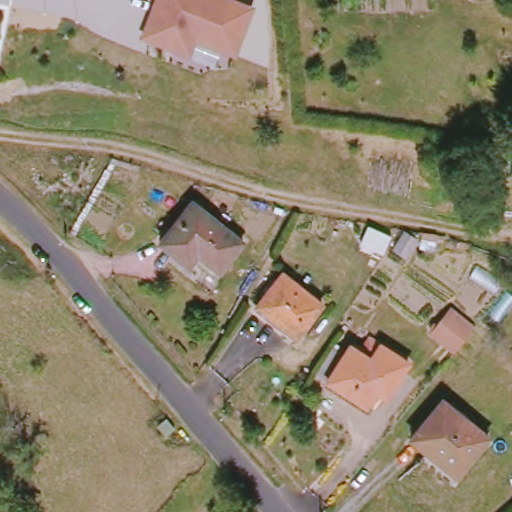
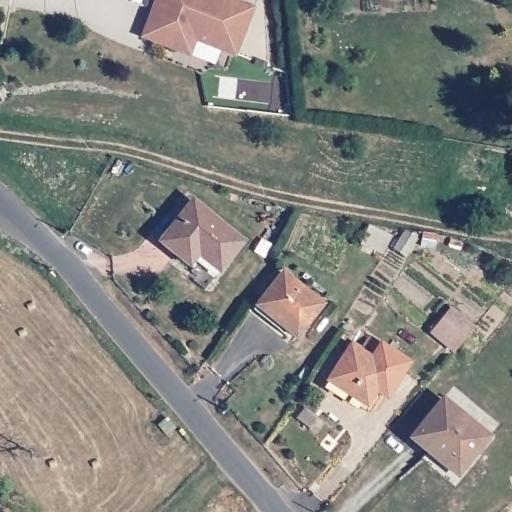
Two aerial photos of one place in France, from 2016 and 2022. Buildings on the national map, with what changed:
unchanged [(181,39),(172,43),(168,51),(139,38),(155,0),(211,0),(247,15),(228,59),(181,39)]
unchanged [(194,196),(244,236),(215,273),(202,263),(199,267),(162,237),(194,196)]
unchanged [(406,239),(416,246),(405,261),(395,254),(406,239)]
unchanged [(279,268),(327,306),(301,339),(283,325),(285,322),(255,298),(279,268)]
unchanged [(454,310),(479,330),(459,353),(435,335),(454,310)]
unchanged [(384,397),(375,412),(325,379),(340,356),(351,364),(359,353),(368,359),(378,345),(402,360),(416,370),(406,385),(394,404),(384,397)]
unchanged [(418,433),(449,396),(494,433),(456,478),(428,455),(434,446),(418,433)]

